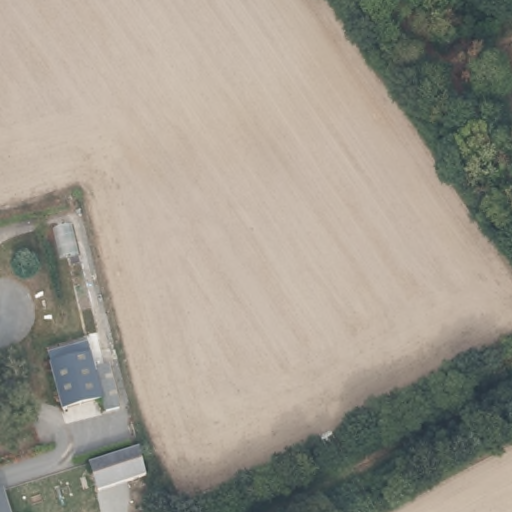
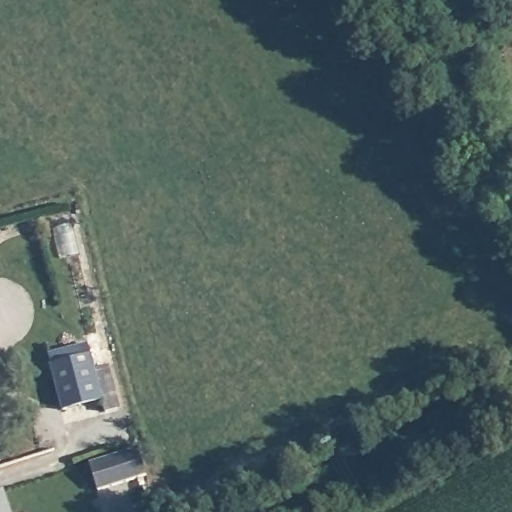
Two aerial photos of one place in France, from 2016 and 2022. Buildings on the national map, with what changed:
unchanged [(112,369),(123,413),(106,416),(104,407),(80,412),(69,366),(92,361),(94,373),(112,369)]
unchanged [(140,445),(146,474),(101,489),(91,461),(140,445)]
unchanged [(12,512),(0,512),(0,487),(4,486),(12,512)]

